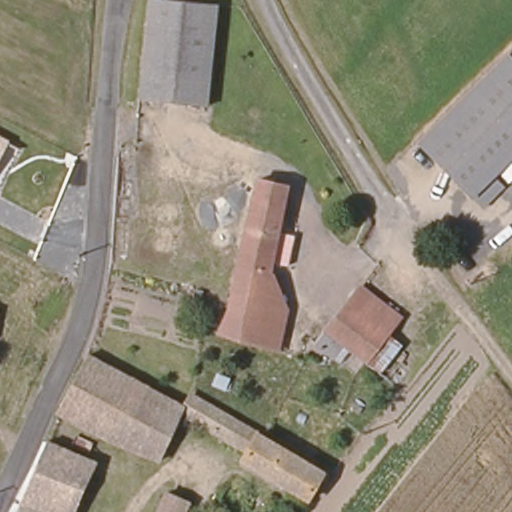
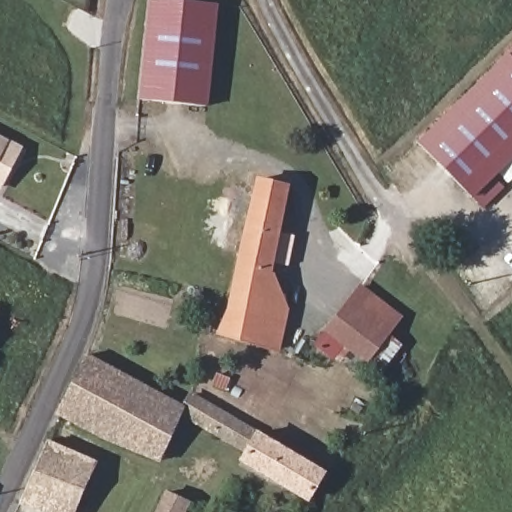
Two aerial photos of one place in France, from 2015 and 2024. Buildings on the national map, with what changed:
unchanged [(207,107),(139,100),(150,1),(216,10),(207,107)]
unchanged [(512,46),(512,56),(507,50),(512,46)]
unchanged [(512,153),(484,181),(495,193),(481,208),(415,140),(507,50),(512,56),(512,153)]
unchanged [(10,141),(0,159),(0,136),(10,141)]
unchanged [(285,308),(277,340),(218,328),(254,176),(286,183),(275,225),(290,229),(283,259),(268,255),(266,263),(285,308)]
unchanged [(405,312),(389,330),(405,343),(384,373),(367,361),(353,349),(337,361),(311,345),(360,279),(405,312)]
unchanged [(155,450),(108,430),(65,404),(60,401),(90,351),(177,399),(174,403),(178,405),(155,450)]
unchanged [(321,458),(304,486),(237,449),(239,439),(178,405),(186,392),(188,389),(321,458)]
unchanged [(52,512),(16,501),(45,440),(97,462),(73,512),(52,512)]
unchanged [(186,512),(159,512),(169,490),(192,498),(186,512)]

